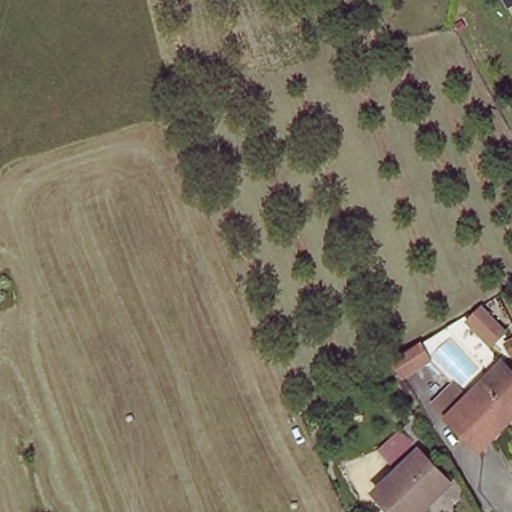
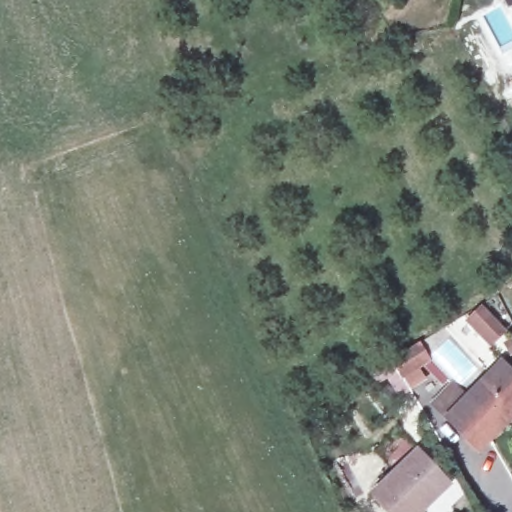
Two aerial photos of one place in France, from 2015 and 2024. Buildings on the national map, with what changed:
unchanged [(483,304),(510,329),(491,347),(467,321),(483,304)]
unchanged [(430,351),(400,379),(389,360),(418,337),(430,351)]
unchanged [(512,416),(483,452),(446,420),(427,403),(442,385),(461,401),(498,356),(512,368),(512,416)]
unchanged [(420,512),(386,512),(371,498),(393,472),(374,453),(392,430),(437,473),(446,482),(429,501),(420,512)]

